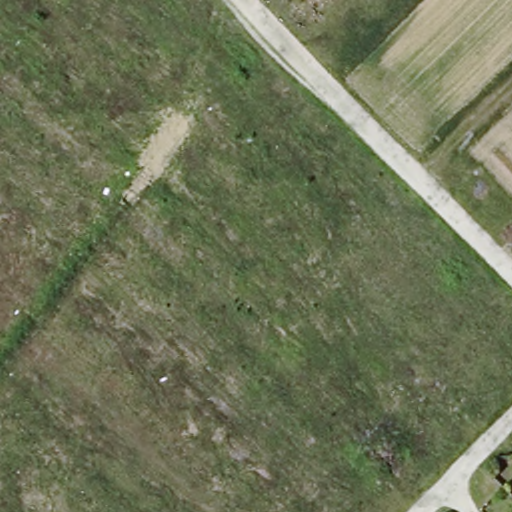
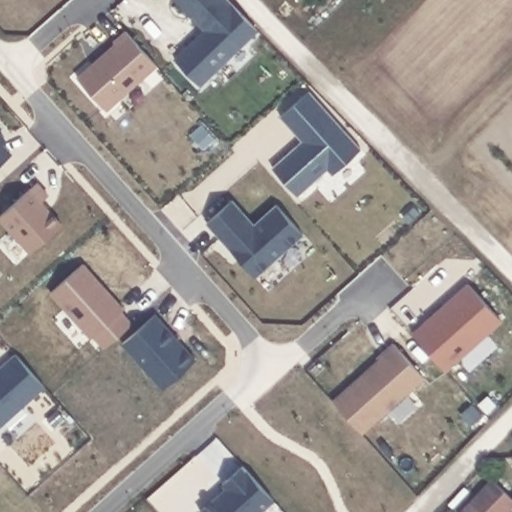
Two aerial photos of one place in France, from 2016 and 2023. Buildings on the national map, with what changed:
new [(200,85),(175,60),(210,26),(205,21),(201,25),(176,0),(228,0),(257,30),(200,85)]
new [(127,34),(155,67),(108,110),(77,76),(127,34)]
new [(302,142),(282,116),(310,93),(360,150),(331,175),(327,169),(297,195),(274,169),(302,142)]
new [(6,139),(2,144),(12,154),(0,164),(0,132),(6,139)]
new [(38,183),(49,195),(42,201),(62,225),(27,251),(0,218),(0,214),(38,183)]
new [(232,200),(255,225),(277,205),(304,235),(256,277),(207,223),(232,200)]
new [(85,264),(125,308),(121,312),(131,324),(104,348),(94,336),(90,339),(51,293),(85,264)]
new [(469,285),(501,320),(445,370),(412,332),(469,285)]
new [(157,315),(197,360),(161,389),(123,345),(157,315)]
new [(395,347),(423,378),(362,433),(332,400),(395,347)]
new [(16,355),(44,387),(0,427),(0,368),(16,355)]
new [(227,488),(222,482),(242,465),(274,500),(261,512),(200,512),(227,488)]
new [(512,497),(512,508),(508,512),(461,512),(494,479),(512,497)]
unchanged [(512,488),(512,493),(510,490),(512,488)]

